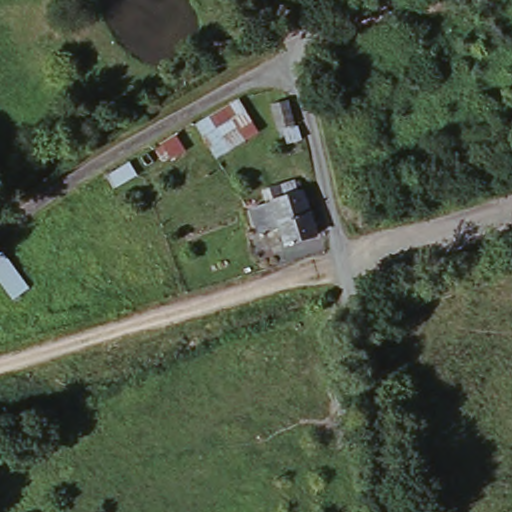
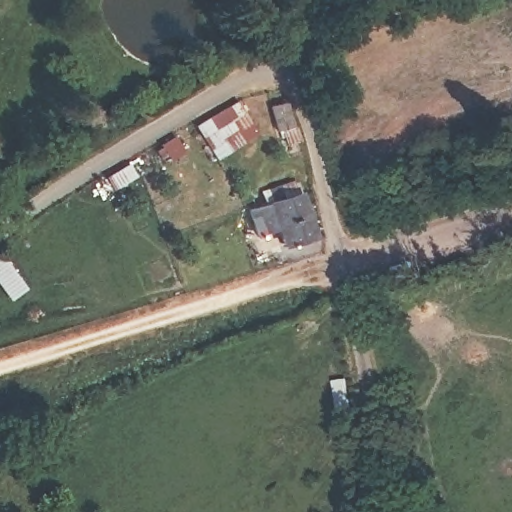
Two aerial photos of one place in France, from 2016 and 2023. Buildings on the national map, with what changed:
unchanged [(240,100),(259,135),(216,159),(196,124),(240,100)]
unchanged [(293,124),(275,126),(270,104),(287,101),(293,124)]
unchanged [(312,245),(287,250),(282,233),(258,237),(253,207),(282,203),(280,186),(297,182),(301,200),(303,199),(312,245)]
unchanged [(5,250),(32,288),(11,302),(0,285),(0,253),(5,250)]

